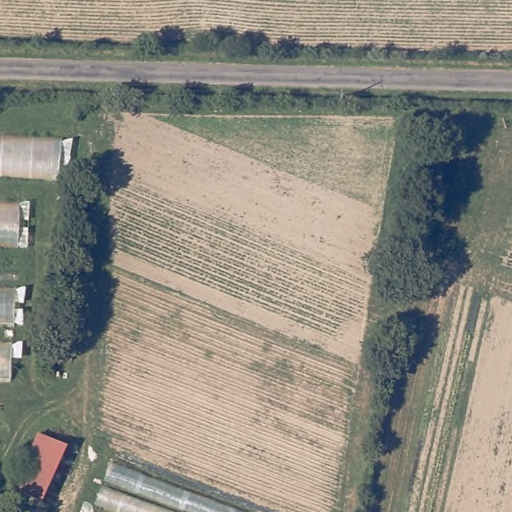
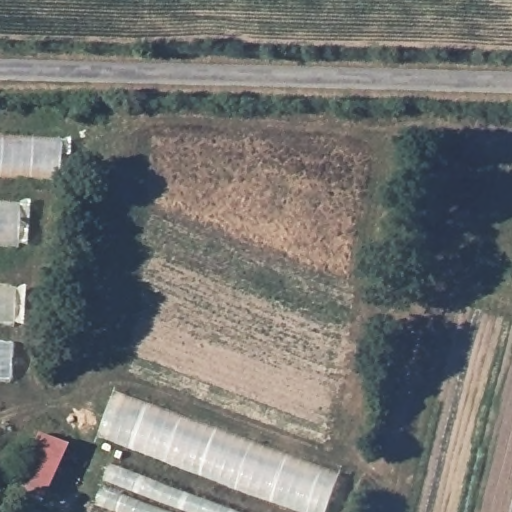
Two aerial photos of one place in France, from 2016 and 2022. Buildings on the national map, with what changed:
unchanged [(0,137),(62,141),(60,183),(0,179),(0,137)]
unchanged [(0,204),(22,206),(20,250),(0,249),(0,204)]
new [(13,323),(0,322),(0,290),(15,291),(13,323)]
new [(11,379),(0,378),(0,345),(11,346),(11,379)]
new [(115,393),(341,476),(328,512),(312,512),(101,432),(115,393)]
unchanged [(46,437),(69,447),(44,503),(30,497),(15,490),(40,435),(46,437)]
new [(111,464),(242,512),(122,512),(96,503),(111,464)]

